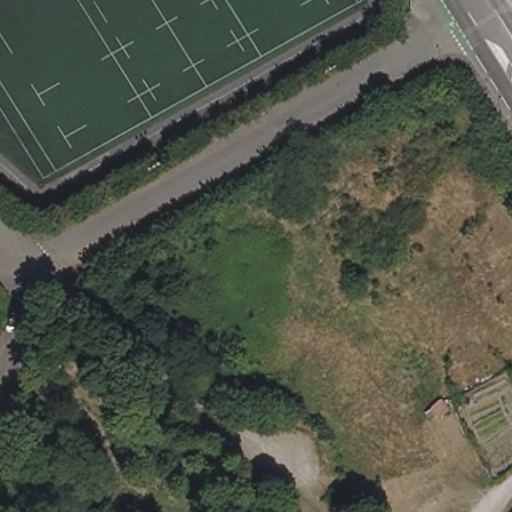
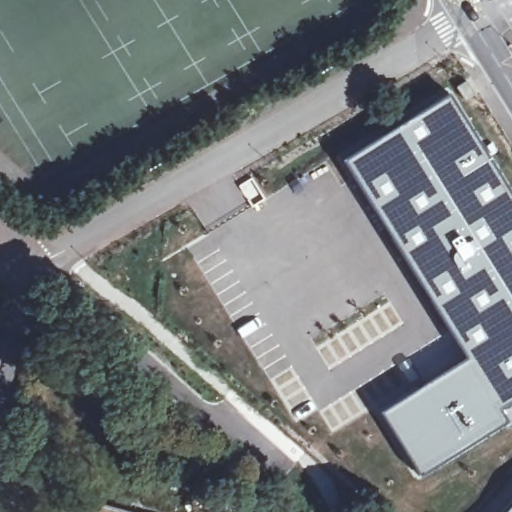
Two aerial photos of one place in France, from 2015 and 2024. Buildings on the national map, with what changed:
new [(506,420),(418,475),(378,409),(462,355),(340,158),(449,91),(489,153),(512,191),(512,422),(509,424),(506,420)]
new [(500,512),(512,499),(512,512),(500,512)]

